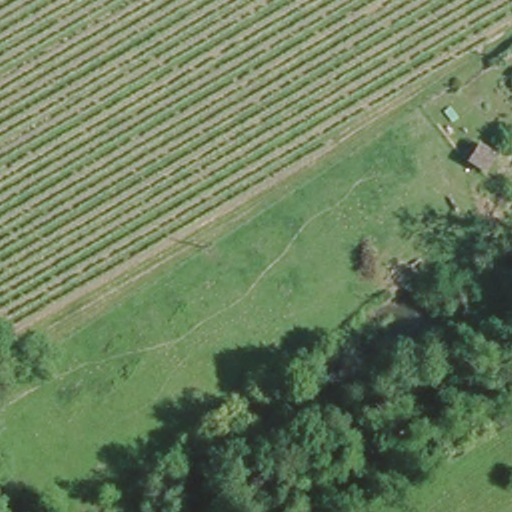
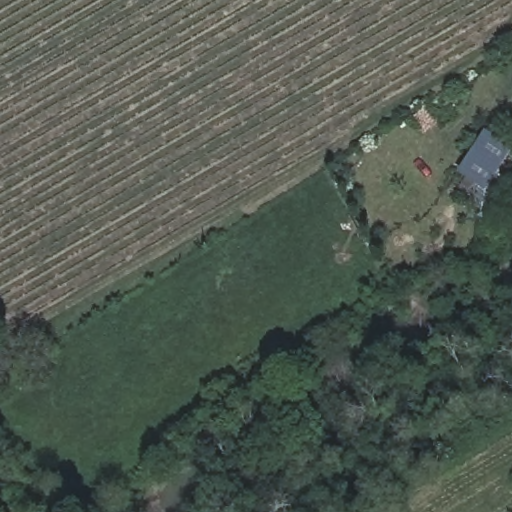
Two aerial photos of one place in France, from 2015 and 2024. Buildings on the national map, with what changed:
new [(482,194),(456,174),(483,135),(510,154),(482,194)]

